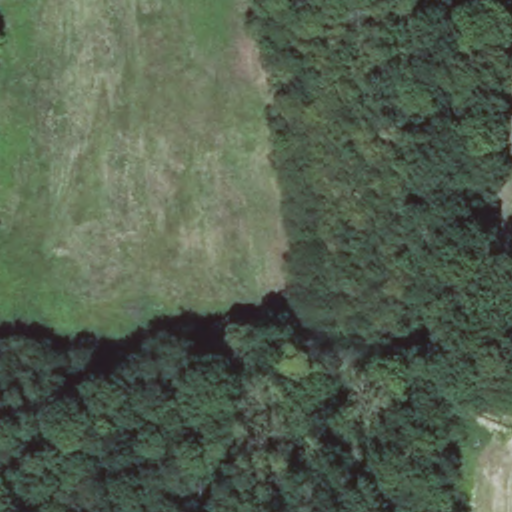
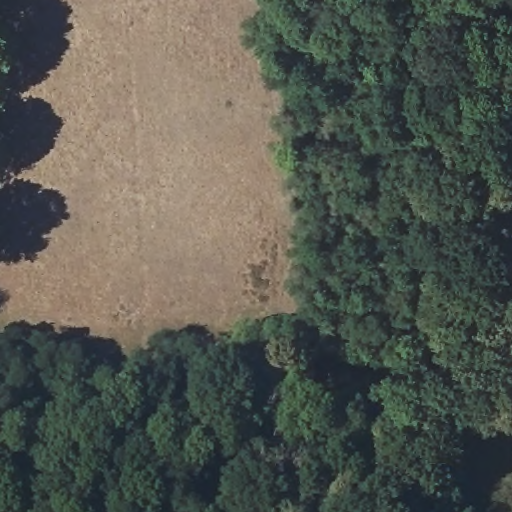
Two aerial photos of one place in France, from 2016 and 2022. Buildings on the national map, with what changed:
unchanged [(512,103),(511,103),(511,74),(512,74),(512,103)]

